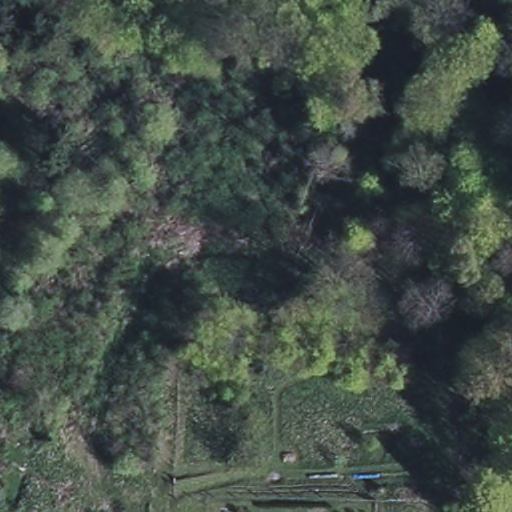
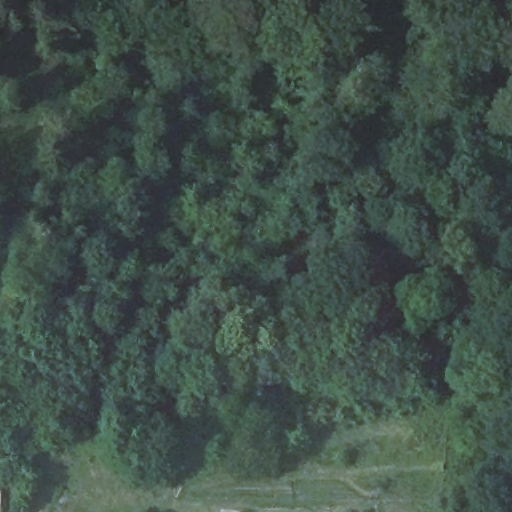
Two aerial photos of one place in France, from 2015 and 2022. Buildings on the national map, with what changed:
unchanged [(0,443),(0,435),(4,418),(33,425),(26,450),(0,443)]

